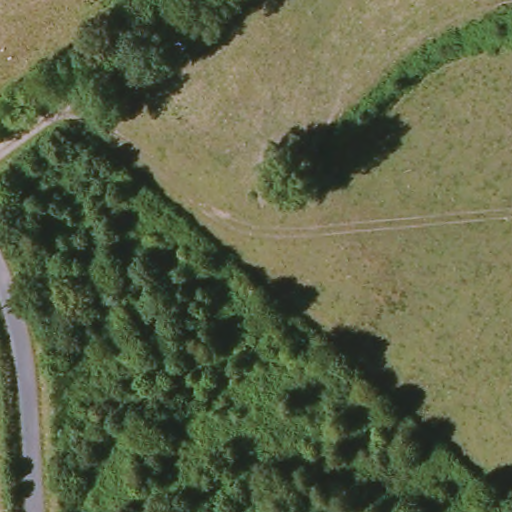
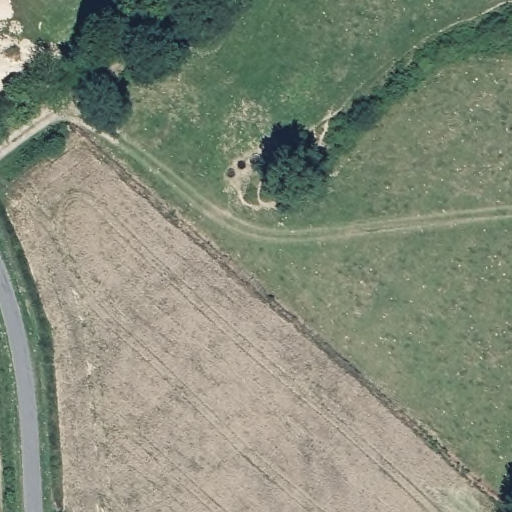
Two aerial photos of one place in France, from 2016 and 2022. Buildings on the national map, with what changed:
unchanged [(177,67),(162,50),(200,4),(219,19),(177,67)]

